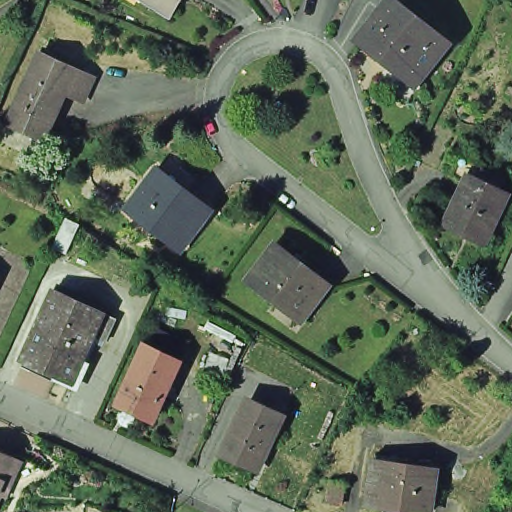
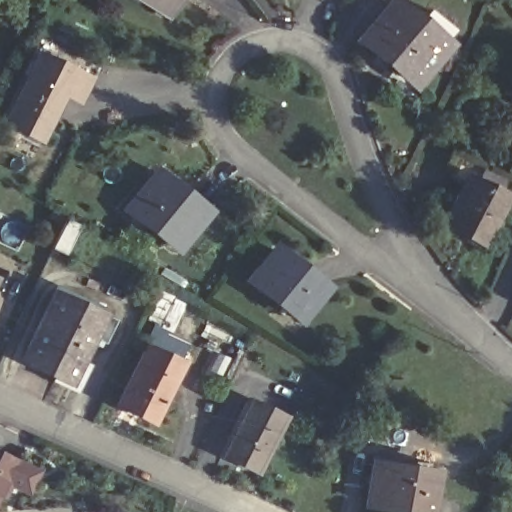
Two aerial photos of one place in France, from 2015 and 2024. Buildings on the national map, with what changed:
unchanged [(168,16),(150,4),(152,0),(179,0),(168,16)]
unchanged [(443,50),(414,87),(362,45),(392,9),(443,50)]
unchanged [(5,125),(38,56),(75,74),(92,82),(81,104),(63,96),(41,143),(5,125)]
unchanged [(455,186),(465,167),(480,175),(473,188),(482,192),(487,182),(508,193),(502,203),(510,207),(487,253),(450,234),(470,193),(455,186)]
unchanged [(180,253),(132,209),(160,180),(165,174),(191,198),(212,219),(180,253)]
unchanged [(85,229),(70,258),(57,252),(72,221),(85,229)]
unchanged [(325,285),(300,317),(250,278),(274,246),(325,285)]
unchanged [(20,355),(52,291),(97,314),(97,312),(111,319),(100,340),(95,337),(82,362),(72,381),(65,378),(20,355)]
unchanged [(147,424),(114,409),(140,353),(149,335),(180,350),(171,368),(173,369),(147,424)]
unchanged [(408,399),(418,388),(432,399),(423,411),(408,399)]
unchanged [(262,468),(228,452),(250,403),(285,418),(262,468)]
unchanged [(0,504),(0,454),(19,462),(0,504)]
unchanged [(376,512),(362,510),(367,468),(368,461),(430,470),(429,477),(424,512),(376,512)]

